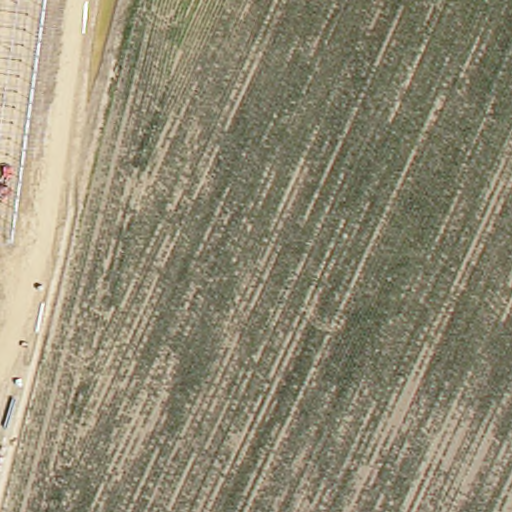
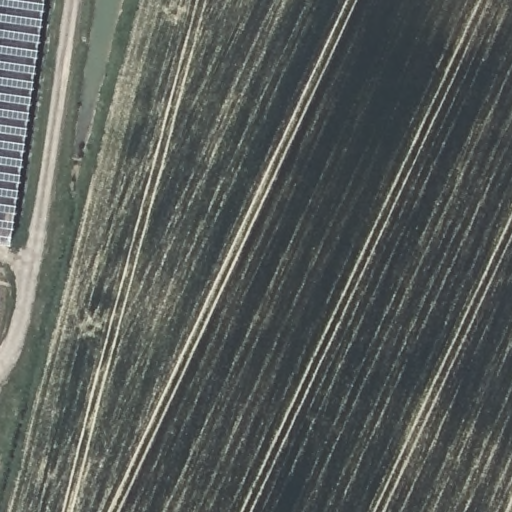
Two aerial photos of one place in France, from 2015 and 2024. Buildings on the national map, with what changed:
new [(0,0),(45,0),(11,239),(0,237),(0,0)]

